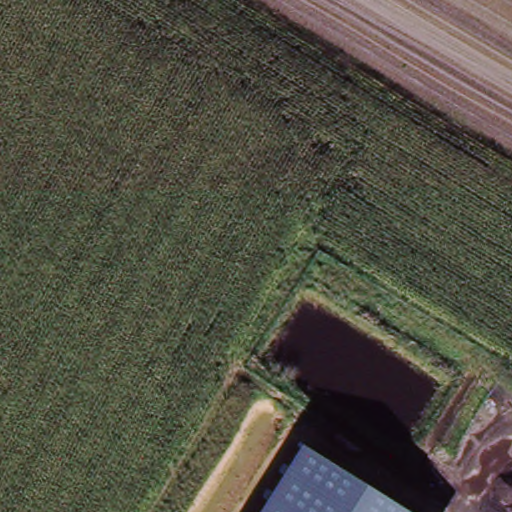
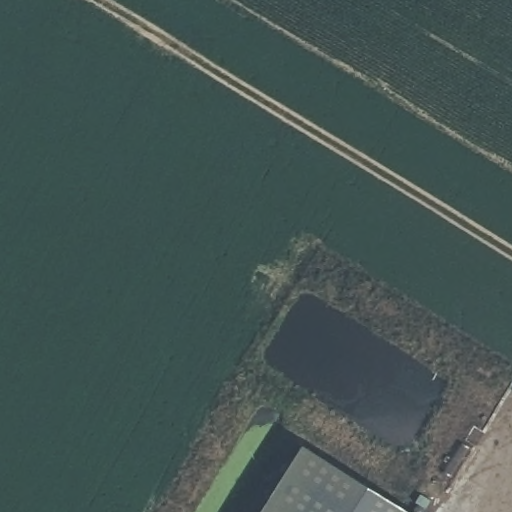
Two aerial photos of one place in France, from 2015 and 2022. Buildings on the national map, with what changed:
unchanged [(302,445),(408,512),(260,512),(302,445)]

